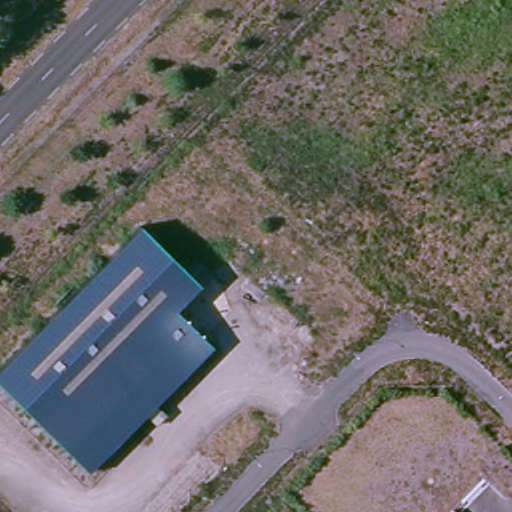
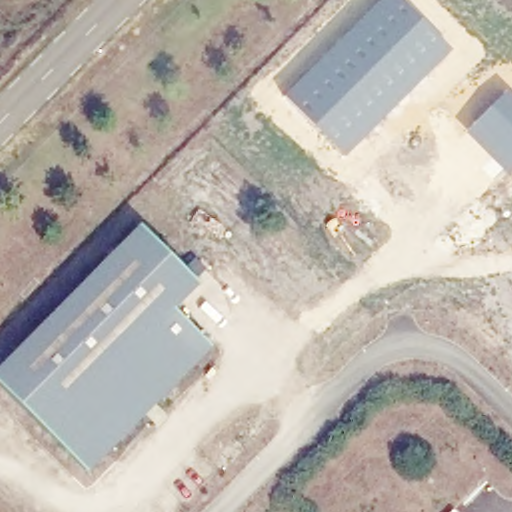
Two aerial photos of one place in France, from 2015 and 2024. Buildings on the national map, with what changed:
new [(378,0),(401,0),(451,51),(344,158),(283,95),(366,11),(378,0)]
new [(507,91),(512,96),(512,173),(509,177),(465,135),(507,91)]
unchanged [(144,414),(88,471),(0,383),(0,366),(139,225),(183,270),(193,260),(204,270),(194,281),(198,285),(173,310),(210,347),(154,404),(165,415),(154,425),(144,414)]

